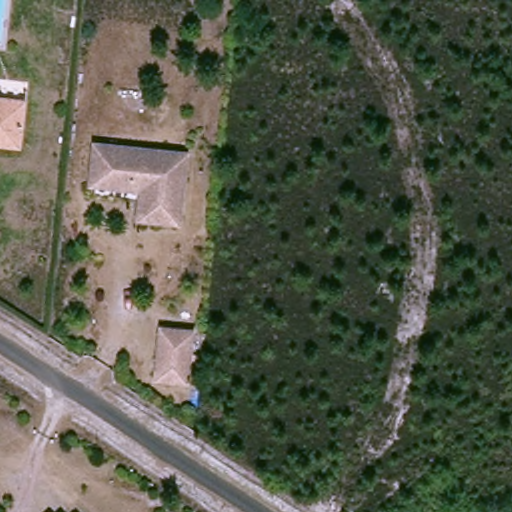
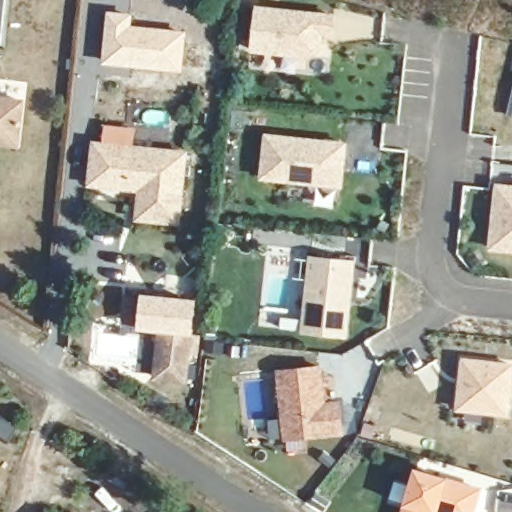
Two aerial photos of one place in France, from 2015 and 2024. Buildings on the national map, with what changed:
new [(249,51),(255,6),(335,14),(333,36),(323,35),(320,49),(310,57),(249,51)]
new [(105,9),(132,13),(131,24),(185,30),(181,72),(99,63),(105,9)]
unchanged [(0,149),(0,106),(25,109),(20,140),(18,151),(0,149)]
new [(259,180),(263,134),(345,142),(342,189),(259,180)]
unchanged [(89,190),(95,147),(183,159),(175,228),(136,225),(140,197),(131,195),(89,190)]
new [(495,183),(512,185),(512,253),(488,251),(495,183)]
new [(346,337),(300,332),(308,256),(355,260),(346,337)]
new [(156,331),(138,330),(140,295),(195,298),(191,334),(186,382),(152,379),(156,331)]
demolished [(189,382),(159,378),(164,330),(194,333),(189,382)]
new [(461,358),(512,363),(512,369),(507,415),(455,410),(461,358)]
new [(283,440),(276,370),(320,365),(324,401),(340,401),(342,434),(283,440)]
new [(403,506),(415,467),(447,477),(481,488),(474,512),(401,512),(403,506)]

